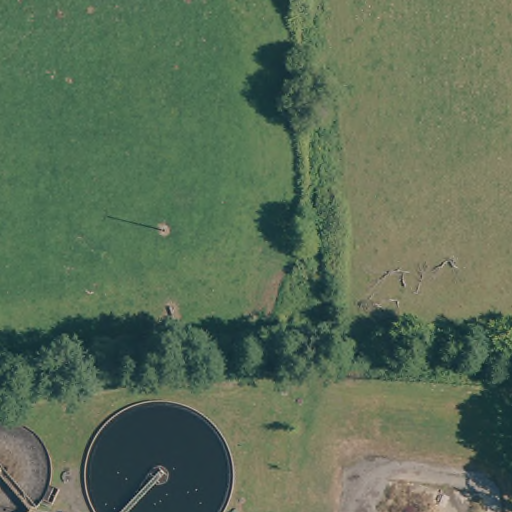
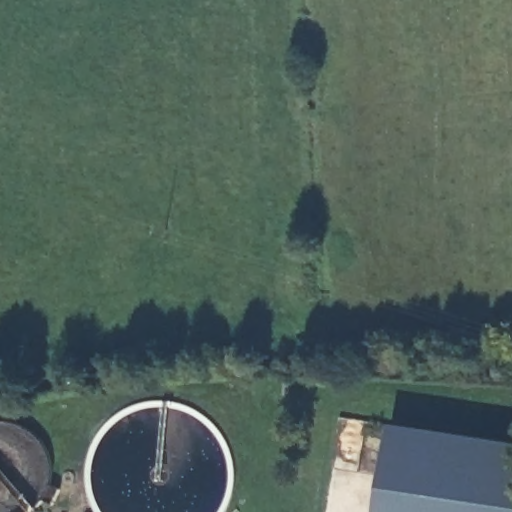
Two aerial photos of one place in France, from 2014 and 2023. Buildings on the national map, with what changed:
new [(512,441),(512,512),(378,512),(392,423),(512,441)]

